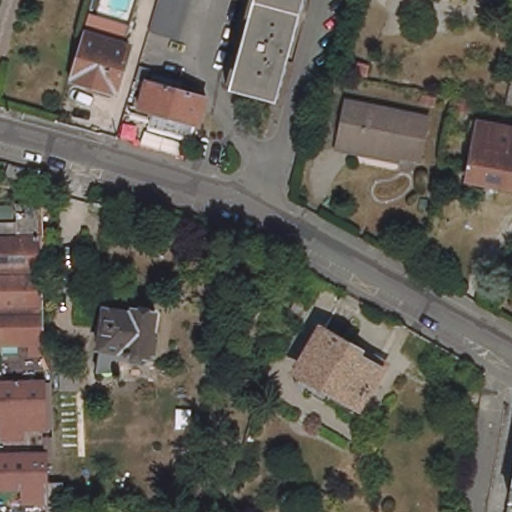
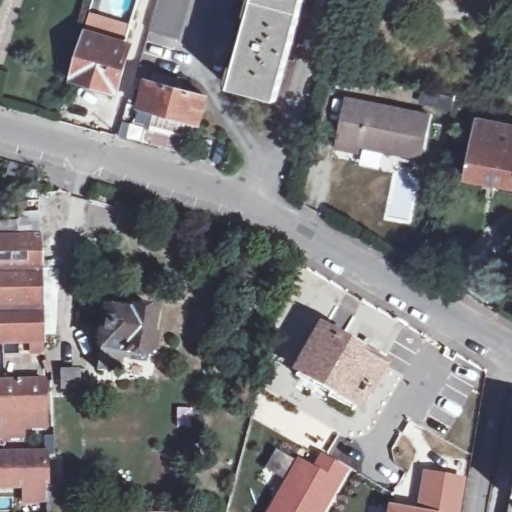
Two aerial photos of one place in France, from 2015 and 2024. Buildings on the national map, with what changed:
unchanged [(188,0),(179,33),(150,26),(157,0),(188,0)]
unchanged [(240,43),(245,29),(250,30),(253,19),(258,0),(307,0),(282,99),(235,86),(246,44),(240,43)]
unchanged [(89,28),(136,42),(124,89),(76,74),(89,28)]
unchanged [(159,113),(140,109),(148,82),(152,84),(155,74),(185,81),(182,91),(207,96),(200,123),(197,123),(192,139),(155,129),(159,113)]
unchanged [(364,149),(341,144),(350,95),(432,110),(426,153),(406,149),(405,156),(364,149)]
unchanged [(469,146),(473,125),(512,131),(512,158),(475,151),(469,146)]
unchanged [(512,158),(512,191),(470,183),(475,151),(512,158)]
unchanged [(23,215),(22,196),(45,197),(47,264),(43,264),(17,266),(0,267),(0,216),(23,215)]
unchanged [(17,266),(43,264),(47,264),(49,349),(7,351),(7,337),(0,337),(0,267),(17,266)]
unchanged [(100,343),(107,303),(116,305),(130,308),(132,302),(143,304),(158,307),(153,334),(159,336),(156,349),(152,348),(150,352),(139,350),(127,348),(102,343),(100,343)]
unchanged [(379,358),(376,364),(380,366),(372,383),(368,379),(354,405),(295,374),(323,325),(379,358)]
unchanged [(2,378),(45,377),(44,409),(0,411),(0,378),(2,378)]
unchanged [(65,511),(62,511),(47,511),(45,482),(0,483),(0,451),(47,451),(47,482),(64,481),(65,511)]
new [(286,480),(267,469),(277,452),(295,462),(298,458),(313,467),(320,454),(348,471),(325,512),(266,512),(286,480)]
new [(417,511),(424,472),(465,479),(460,512),(387,512),(387,507),(417,511)]
unchanged [(512,505),(512,512),(511,512),(512,505)]
new [(148,512),(124,512),(125,509),(148,512)]

